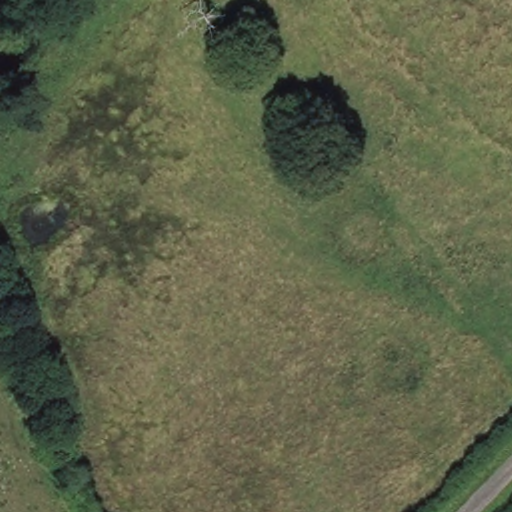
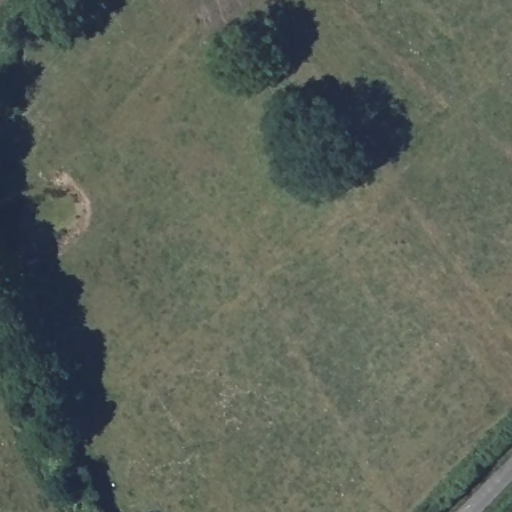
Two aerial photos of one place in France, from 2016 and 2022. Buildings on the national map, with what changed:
[]

